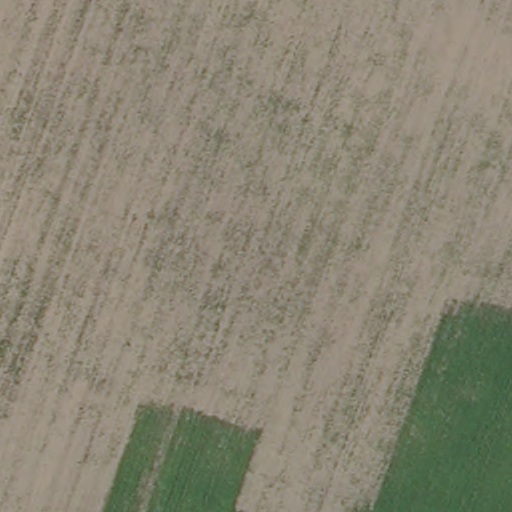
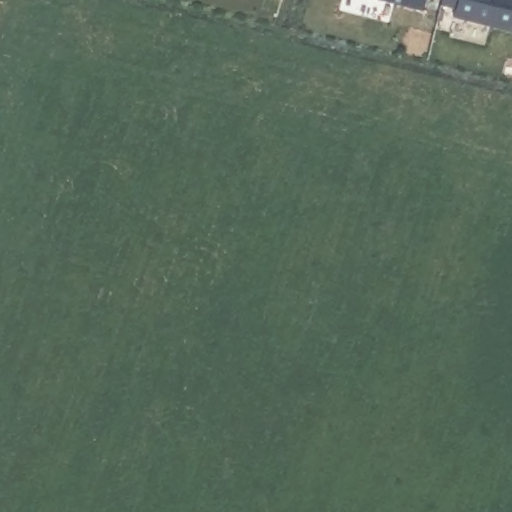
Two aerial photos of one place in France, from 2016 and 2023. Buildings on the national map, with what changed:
new [(423,11),(408,7),(379,0),(425,0),(423,11)]
new [(455,17),(457,9),(441,6),(442,0),(512,0),(512,31),(455,17)]

